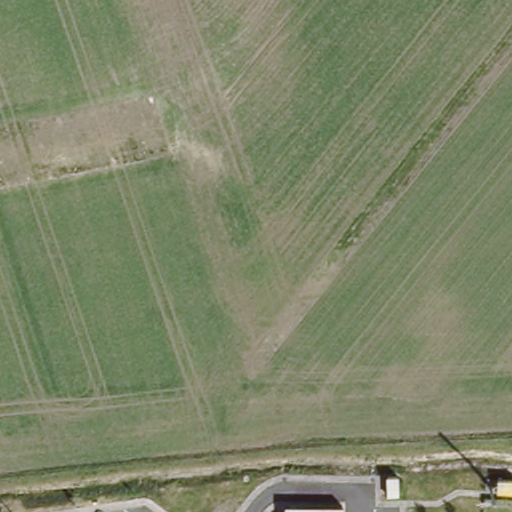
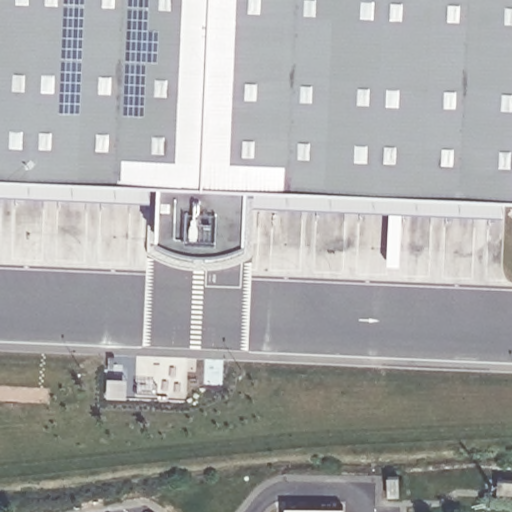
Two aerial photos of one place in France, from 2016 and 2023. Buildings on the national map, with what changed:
new [(245,240),(212,248),(193,248),(173,244),(153,235),(160,175),(0,167),(0,0),(512,0),(512,189),(247,177),(245,240)]
unchanged [(342,507),(342,512),(285,512),(285,507),(342,507)]

